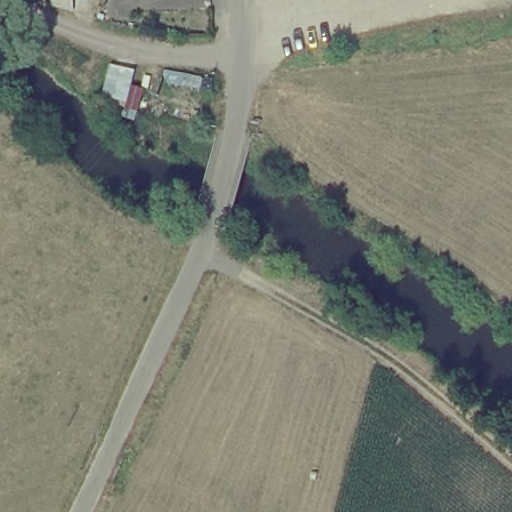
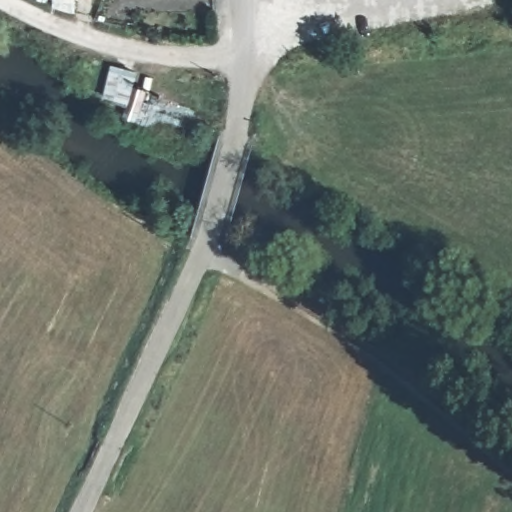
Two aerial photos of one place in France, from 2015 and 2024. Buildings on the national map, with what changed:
unchanged [(126,105),(99,96),(108,60),(136,69),(126,105)]

